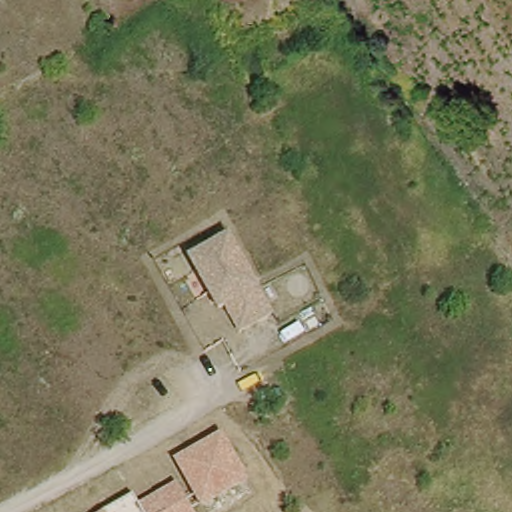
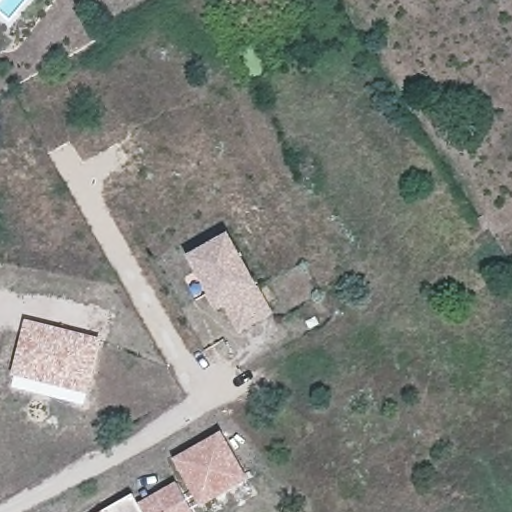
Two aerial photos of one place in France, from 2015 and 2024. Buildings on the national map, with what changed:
unchanged [(257,285),(270,315),(238,333),(223,309),(215,313),(184,260),(230,237),(257,285)]
new [(12,375),(26,319),(104,339),(89,394),(12,375)]
unchanged [(252,480),(202,507),(174,457),(223,431),(252,480)]
unchanged [(134,493),(140,504),(178,482),(194,512),(101,512),(134,493)]

